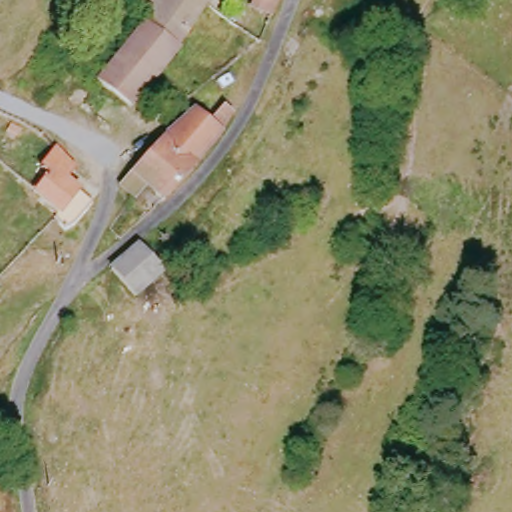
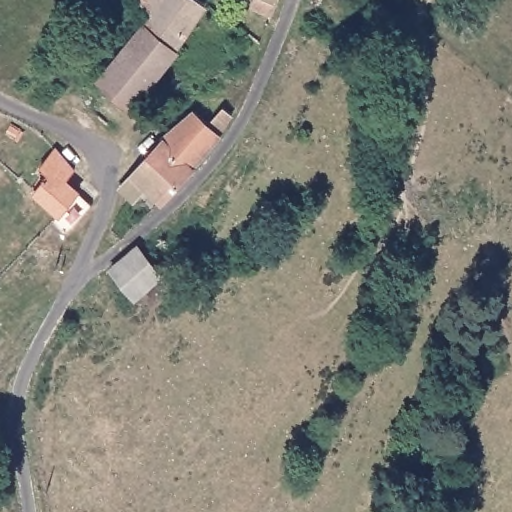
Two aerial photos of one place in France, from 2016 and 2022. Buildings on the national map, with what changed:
unchanged [(204,11),(202,16),(171,54),(172,58),(131,108),(96,80),(147,19),(130,4),(134,0),(187,0),(204,11)]
unchanged [(204,11),(187,0),(209,0),(204,11)]
unchanged [(270,1),(268,0),(271,0),(270,1)]
unchanged [(116,188),(129,172),(188,114),(205,126),(220,110),(228,117),(190,166),(194,168),(158,202),(140,183),(125,198),(116,188)]
unchanged [(46,220),(52,215),(30,193),(45,174),(36,166),(51,151),(70,170),(62,179),(87,204),(74,218),(62,233),(46,220)]
unchanged [(156,280),(129,302),(109,274),(116,266),(135,250),(156,280)]

